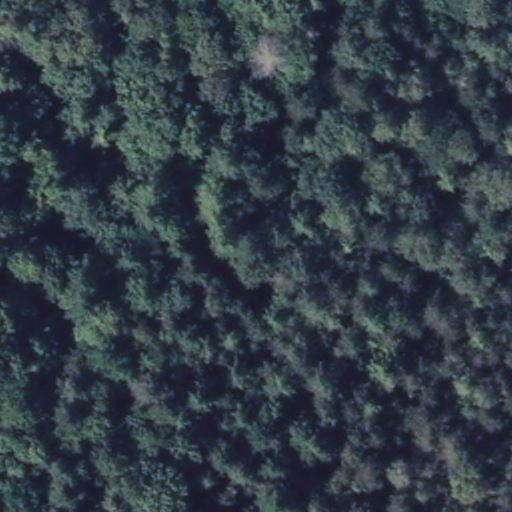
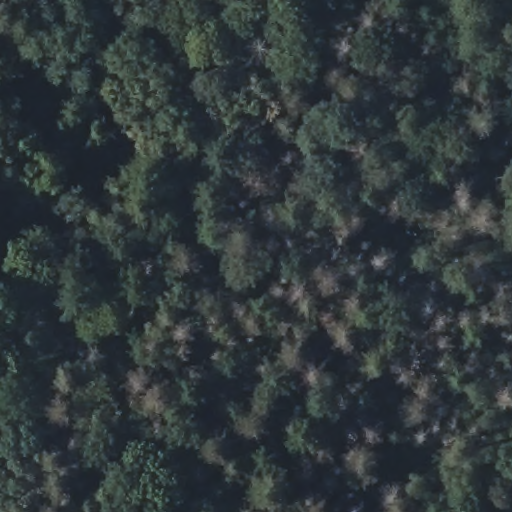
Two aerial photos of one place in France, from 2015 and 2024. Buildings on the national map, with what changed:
[]

